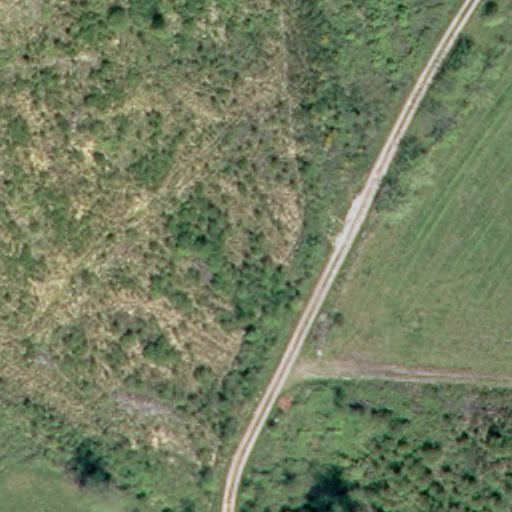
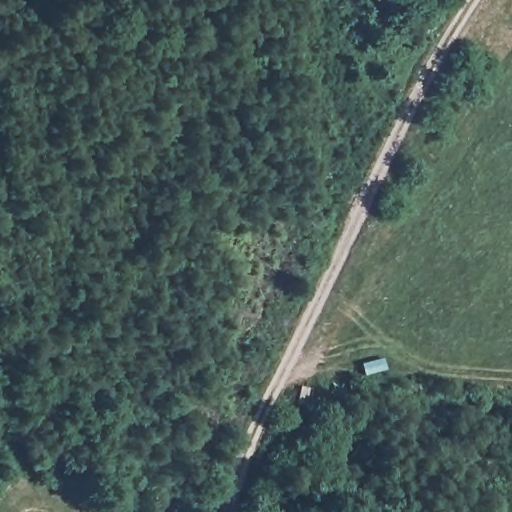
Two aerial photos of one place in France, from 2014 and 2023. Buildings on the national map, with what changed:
[]

